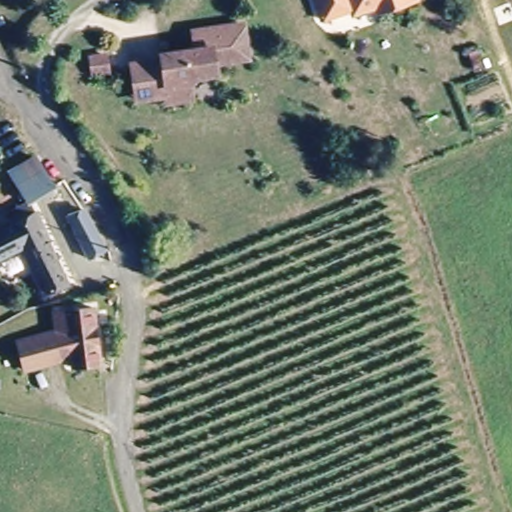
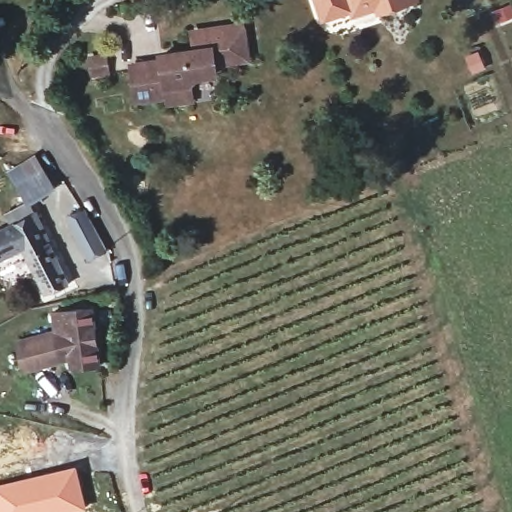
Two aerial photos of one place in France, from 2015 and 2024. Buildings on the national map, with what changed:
unchanged [(321,0),(403,0),(355,17),(354,12),(327,21),(321,0)]
unchanged [(64,13),(74,10),(77,18),(67,21),(64,13)]
unchanged [(130,64),(147,62),(160,60),(160,54),(195,48),(192,27),(241,20),(245,52),(215,57),(216,66),(196,68),(185,82),(187,94),(166,97),(165,91),(152,94),(135,96),(130,64)]
unchanged [(93,76),(110,74),(111,89),(95,92),(93,76)]
unchanged [(16,175),(41,163),(58,193),(31,206),(16,175)]
unchanged [(70,286),(47,297),(24,251),(0,263),(0,235),(14,228),(8,217),(31,206),(70,286)]
unchanged [(71,220),(87,212),(109,255),(92,263),(71,220)]
unchanged [(57,327),(62,326),(59,307),(99,302),(105,359),(79,362),(77,353),(67,355),(57,327)]
unchanged [(32,364),(24,335),(57,327),(67,355),(32,364)]
new [(88,507),(70,512),(0,512),(0,484),(77,465),(88,507)]

